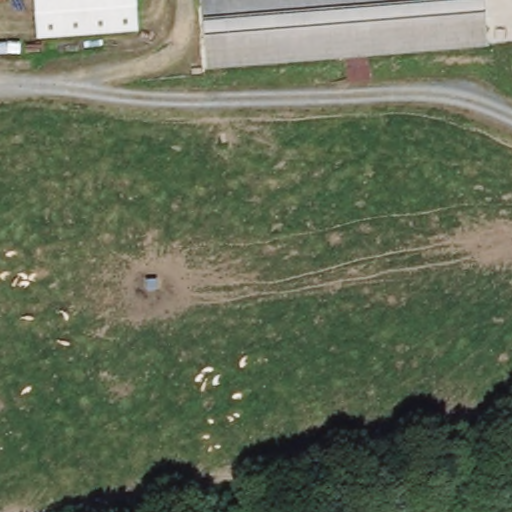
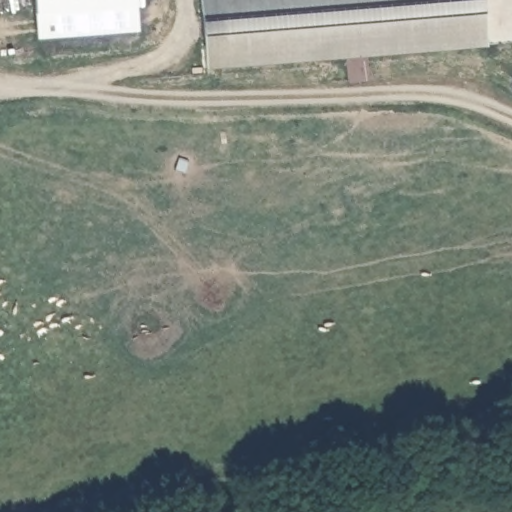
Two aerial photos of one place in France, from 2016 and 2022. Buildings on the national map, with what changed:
unchanged [(139,32),(38,39),(35,0),(137,0),(139,32)]
unchanged [(205,1),(212,0),(487,0),(492,61),(211,82),(205,1)]

